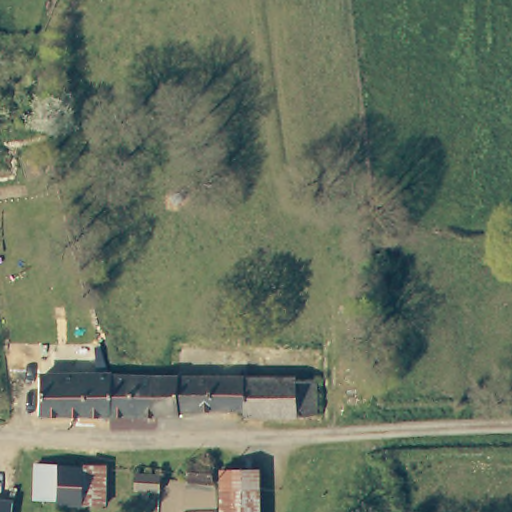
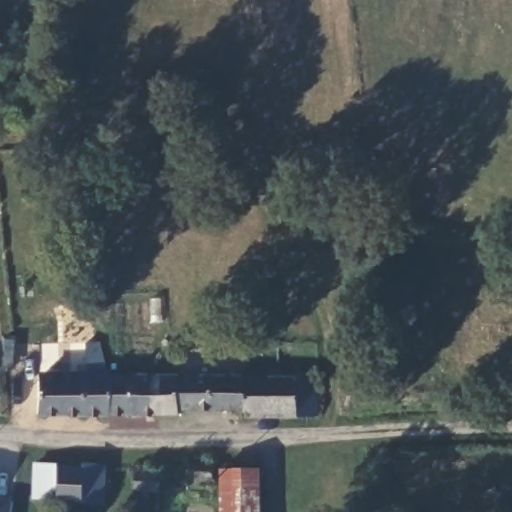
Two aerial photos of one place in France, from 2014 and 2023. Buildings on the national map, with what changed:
unchanged [(108,420),(86,420),(62,420),(42,419),(40,419),(39,382),(62,382),(88,383),(107,383),(130,382),(156,382),(156,383),(159,383),(178,382),(275,380),(296,380),(296,383),(317,384),(317,421),(296,421),(276,421),(243,422),(243,414),(180,413),(180,422),(156,421),(131,422),(108,420)]
unchanged [(184,481),(186,461),(209,463),(206,485),(184,481)]
unchanged [(103,510),(82,508),(55,506),(56,502),(36,502),(38,468),(59,469),(85,472),(106,473),(103,510)]
unchanged [(220,487),(220,471),(258,471),(260,512),(221,512),(220,487)]
unchanged [(129,490),(130,474),(143,475),(154,476),(154,477),(153,492),(142,491),(129,490)]
unchanged [(0,497),(12,500),(10,512),(0,512),(0,497)]

